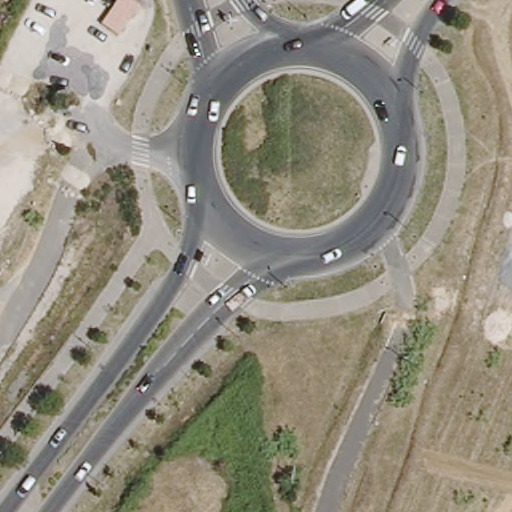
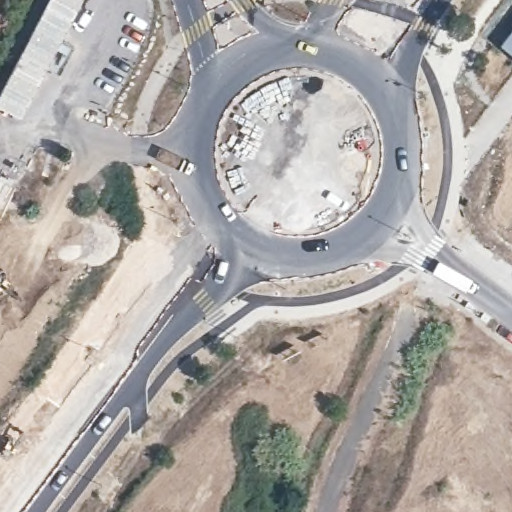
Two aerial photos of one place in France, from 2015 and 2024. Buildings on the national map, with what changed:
new [(512,28),(512,54),(500,44),(512,28)]

